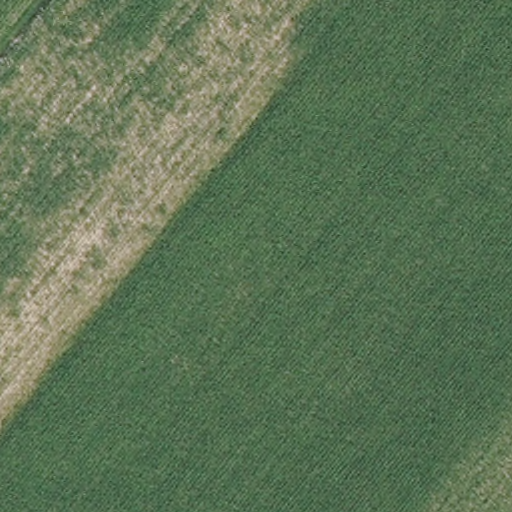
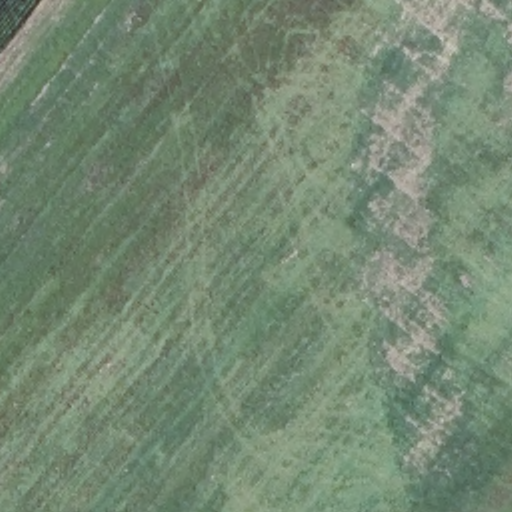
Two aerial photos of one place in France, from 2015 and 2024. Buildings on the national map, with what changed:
[]

